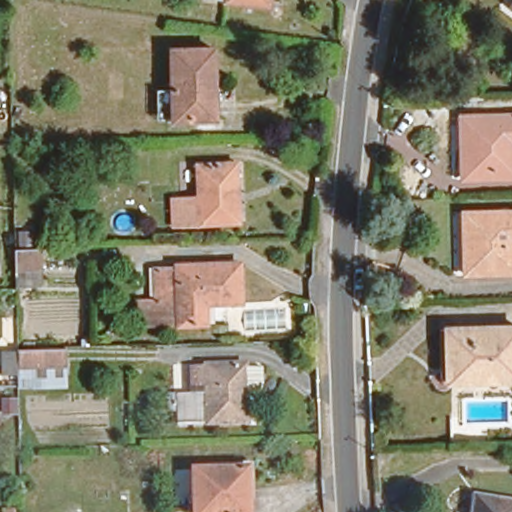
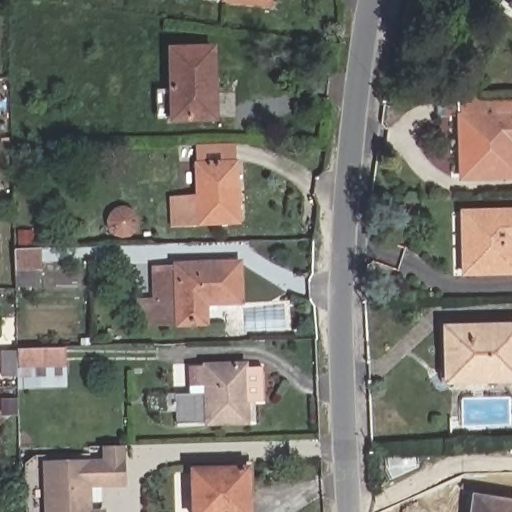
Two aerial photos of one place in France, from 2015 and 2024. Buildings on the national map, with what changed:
unchanged [(235,3),(236,0),(279,0),(279,5),(235,3)]
unchanged [(218,49),(212,119),(167,117),(173,45),(218,49)]
unchanged [(460,115),(512,114),(512,175),(461,175),(460,115)]
unchanged [(234,224),(169,225),(170,196),(197,196),(198,169),(235,170),(234,224)]
unchanged [(460,214),(512,213),(512,273),(460,273),(460,214)]
unchanged [(36,266),(11,265),(10,243),(35,243),(36,266)]
unchanged [(186,263),(247,263),(248,301),(215,303),(215,320),(169,321),(166,267),(186,267),(186,263)]
unchanged [(448,332),(512,331),(512,383),(450,385),(448,332)]
unchanged [(43,389),(42,366),(19,364),(1,362),(0,342),(18,340),(67,341),(69,388),(43,389)]
unchanged [(239,371),(260,370),(260,403),(240,403),(240,422),(174,423),(172,395),(193,393),(191,367),(239,366),(239,371)]
new [(101,459),(100,446),(124,446),(125,487),(90,488),(91,508),(105,508),(105,512),(43,512),(41,460),(101,459)]
unchanged [(247,512),(195,512),(192,468),(246,468),(247,512)]
unchanged [(476,498),(512,502),(512,512),(474,512),(476,498)]

